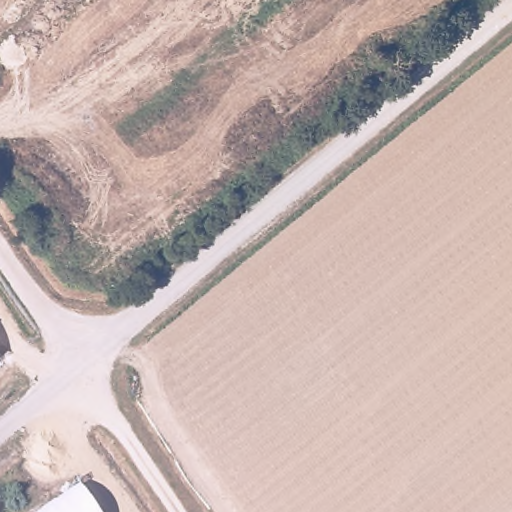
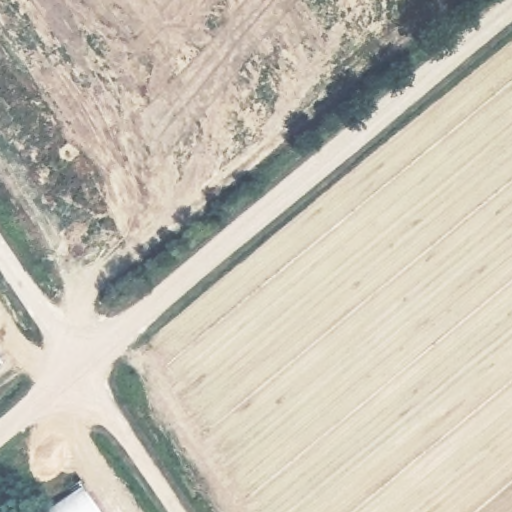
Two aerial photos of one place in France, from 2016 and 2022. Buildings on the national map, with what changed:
unchanged [(82,489),(99,512),(48,512),(82,489)]

